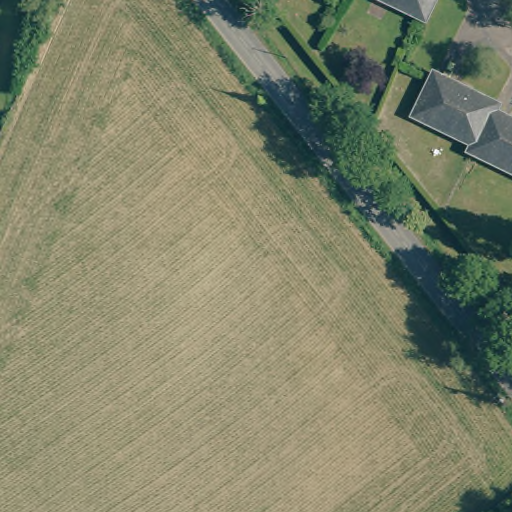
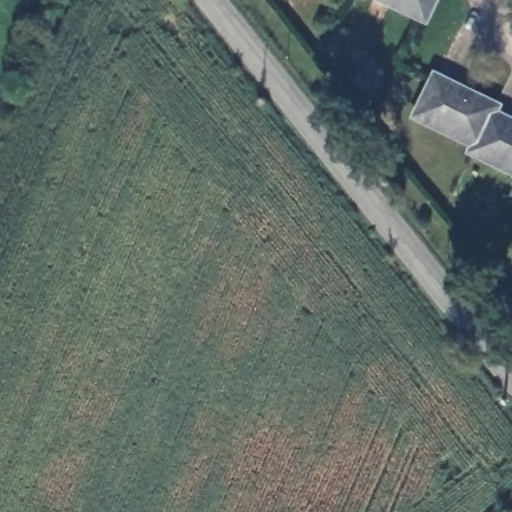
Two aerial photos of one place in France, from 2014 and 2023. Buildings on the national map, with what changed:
unchanged [(443,0),(434,20),(390,0),(443,0)]
unchanged [(478,149),(481,142),(423,114),(441,76),(454,84),(452,88),(471,96),(472,92),(499,105),(496,112),(509,119),(508,123),(512,125),(512,166),(478,149)]

